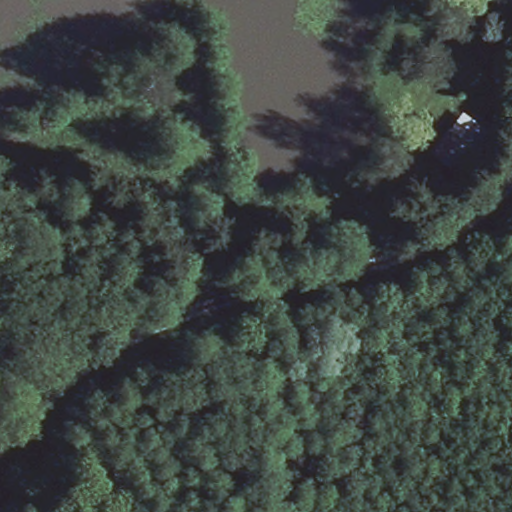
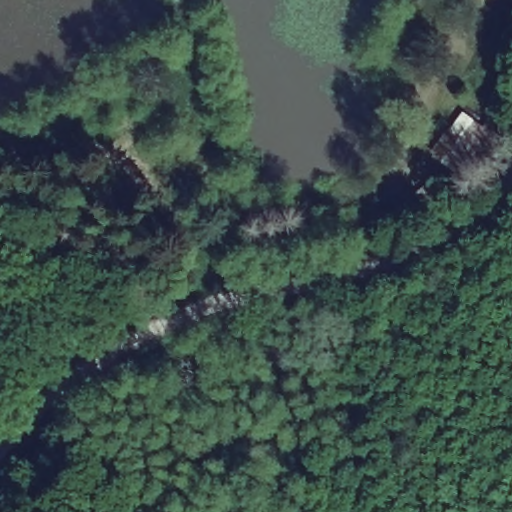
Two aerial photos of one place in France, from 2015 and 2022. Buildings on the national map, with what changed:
unchanged [(483,123),(496,110),(510,120),(462,179),(437,163),(457,137),(450,130),(465,114),(483,123)]

